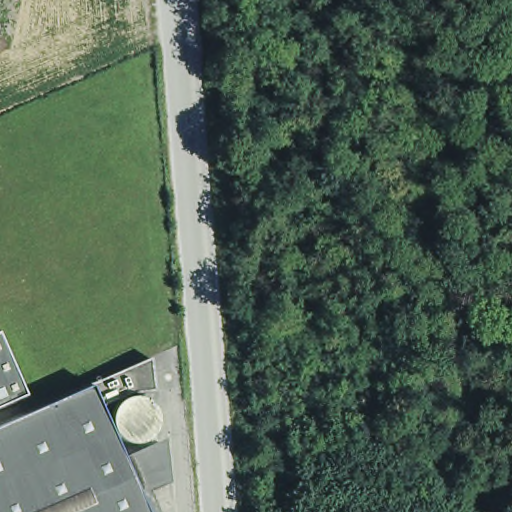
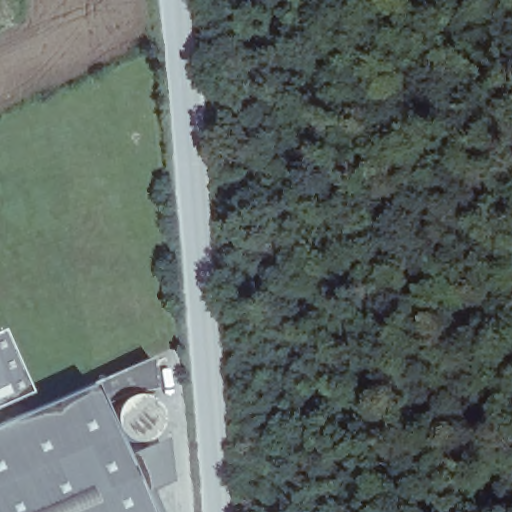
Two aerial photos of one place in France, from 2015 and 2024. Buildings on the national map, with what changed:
unchanged [(24,392),(0,403),(0,342),(24,392)]
unchanged [(91,382),(147,361),(172,481),(149,493),(156,512),(0,512),(0,422),(91,382)]

